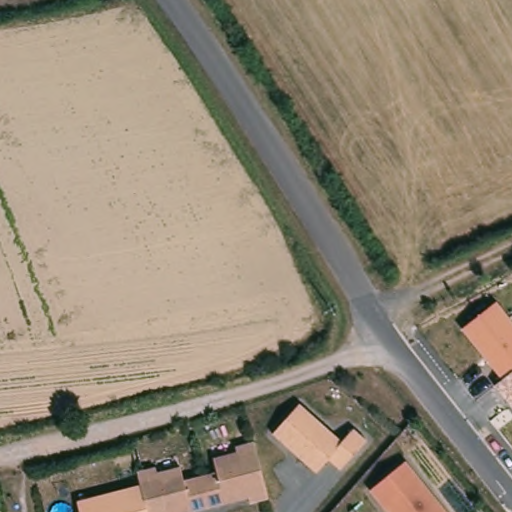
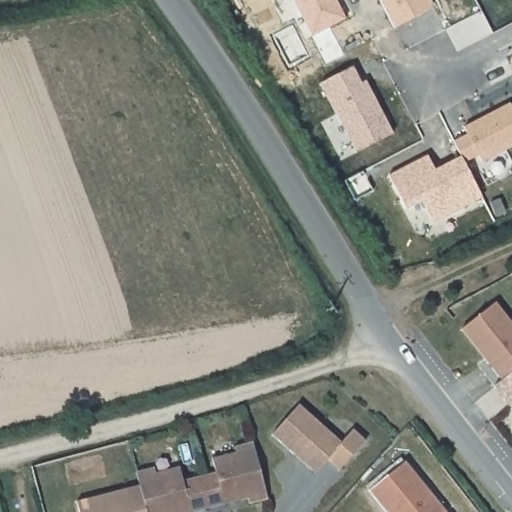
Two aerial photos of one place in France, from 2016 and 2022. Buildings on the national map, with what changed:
new [(349,18),(312,37),(293,0),(339,0),(349,18)]
new [(436,7),(396,27),(382,0),(432,0),(436,7)]
new [(353,65),(361,81),(367,79),(395,131),(356,152),(321,82),(353,65)]
new [(512,102),(512,147),(482,162),(478,155),(465,162),(461,155),(455,139),(468,132),(465,124),(511,101),(512,102)]
new [(436,177),(450,170),(447,163),(461,155),(465,162),(482,197),(435,220),(425,199),(406,209),(390,173),(425,156),(436,177)]
unchanged [(502,378),(462,329),(498,300),(512,318),(512,405),(496,384),(502,378)]
unchanged [(340,441),(355,426),(367,436),(340,468),(327,457),(315,470),(272,432),(300,401),(340,441)]
unchanged [(139,467),(155,463),(158,468),(182,462),(186,475),(216,468),(215,453),(237,450),(237,444),(255,437),(272,498),(250,503),(249,494),(182,512),(79,512),(76,499),(140,482),(139,467)]
unchanged [(394,512),(375,489),(410,459),(455,512),(394,512)]

